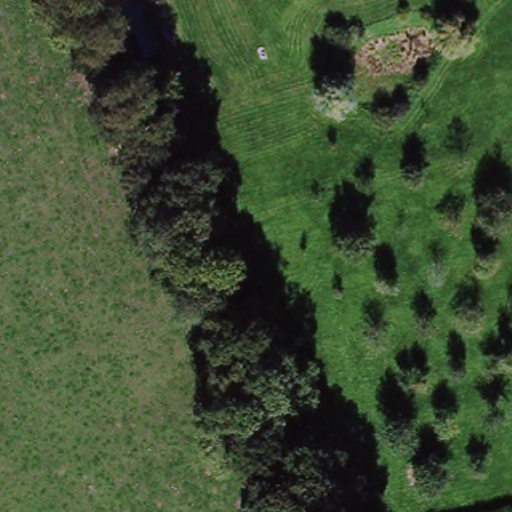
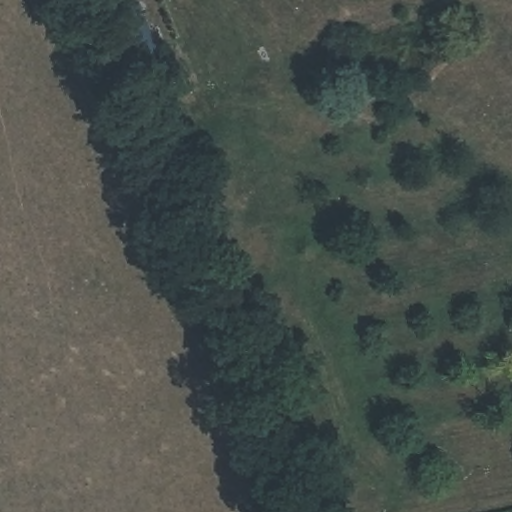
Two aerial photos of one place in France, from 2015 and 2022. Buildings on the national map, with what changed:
unchanged [(128,77),(97,0),(137,0),(158,60),(128,77)]

